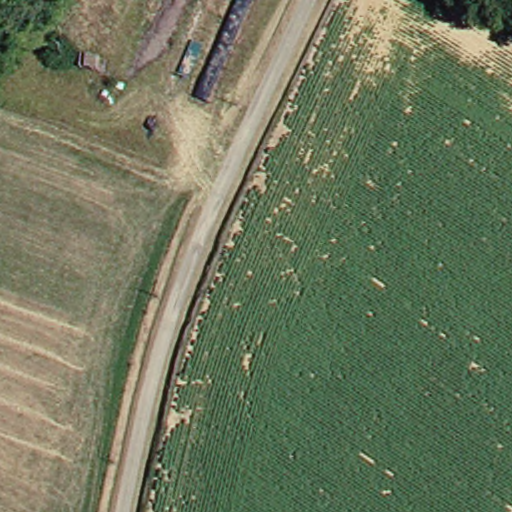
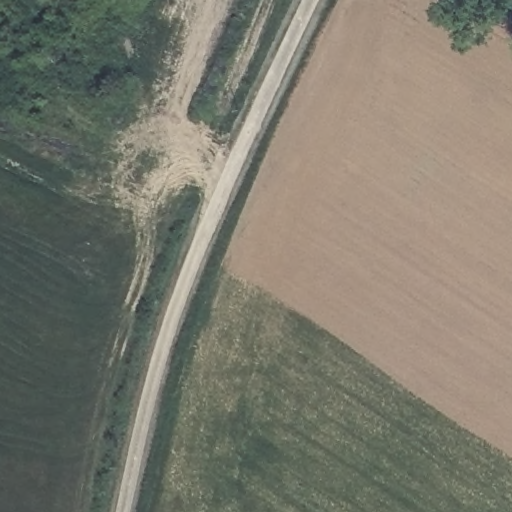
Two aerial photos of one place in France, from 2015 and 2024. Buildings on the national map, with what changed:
[]

